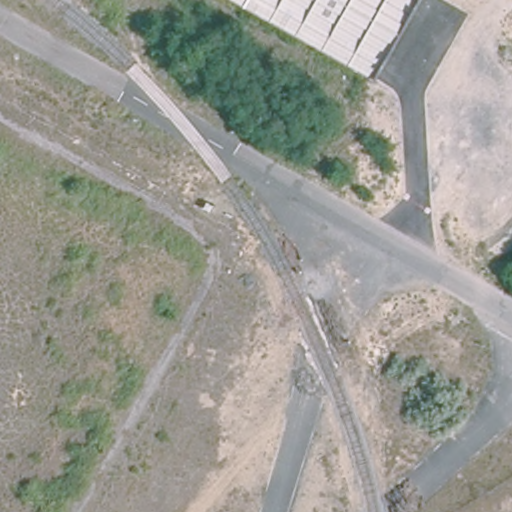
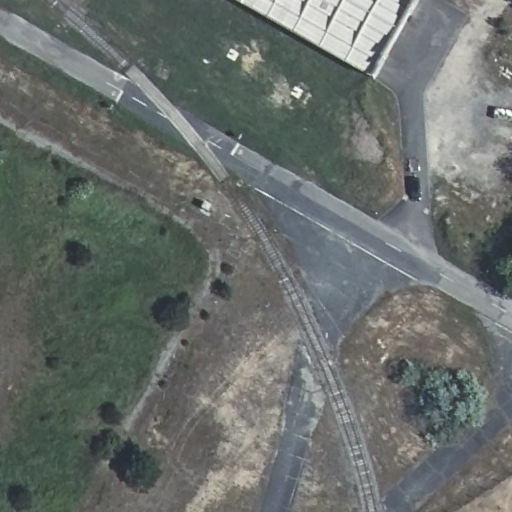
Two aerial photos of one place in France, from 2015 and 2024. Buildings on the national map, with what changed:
unchanged [(372,78),(235,0),(417,0),(372,78)]

